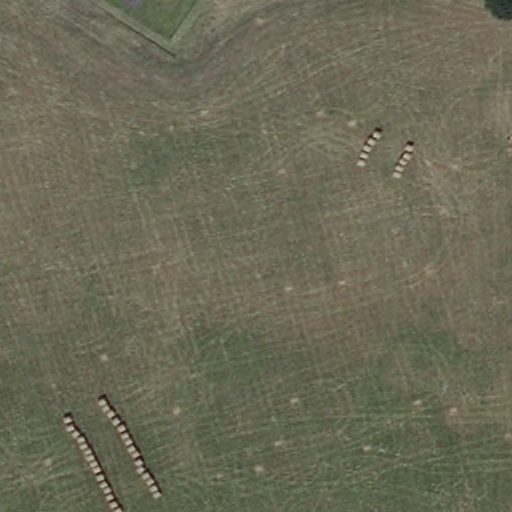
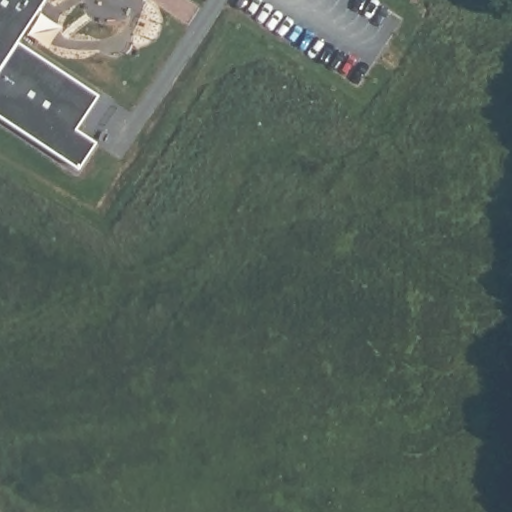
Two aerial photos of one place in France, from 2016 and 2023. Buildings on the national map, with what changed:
new [(95,98),(75,131),(94,144),(76,170),(0,120),(0,0),(44,0),(15,43),(95,98)]

